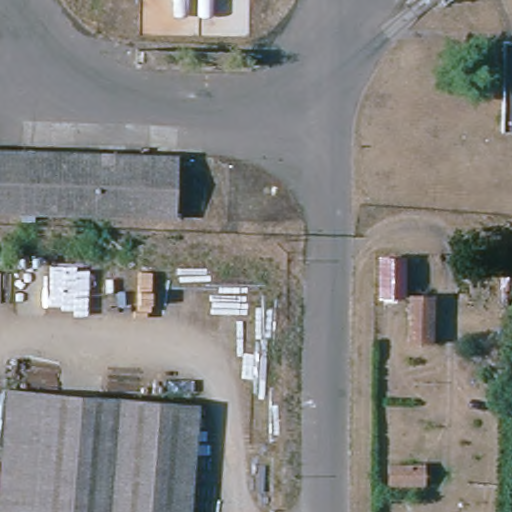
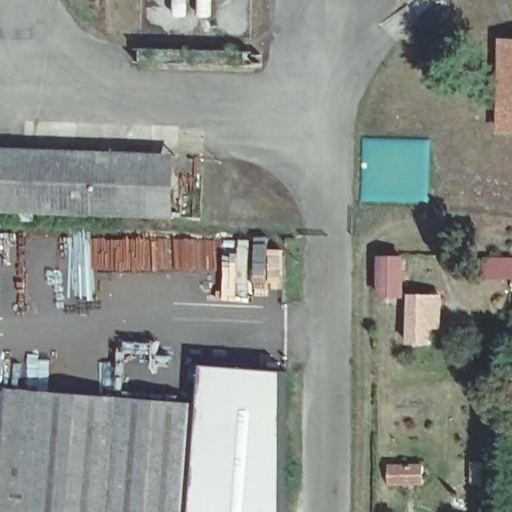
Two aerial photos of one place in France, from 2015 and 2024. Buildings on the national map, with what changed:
unchanged [(512,42),(512,131),(505,130),(506,42),(512,42)]
unchanged [(149,222),(0,213),(0,148),(151,156),(149,222)]
unchanged [(151,156),(178,158),(176,225),(149,222),(151,156)]
unchanged [(410,258),(407,295),(402,294),(401,300),(387,299),(390,257),(410,258)]
unchanged [(417,341),(419,296),(436,297),(434,343),(417,341)]
new [(205,365),(284,371),(284,512),(192,512),(199,399),(203,399),(205,365)]
unchanged [(0,512),(0,479),(5,387),(199,399),(192,512),(0,512)]
unchanged [(416,471),(415,490),(383,487),(384,468),(416,471)]

